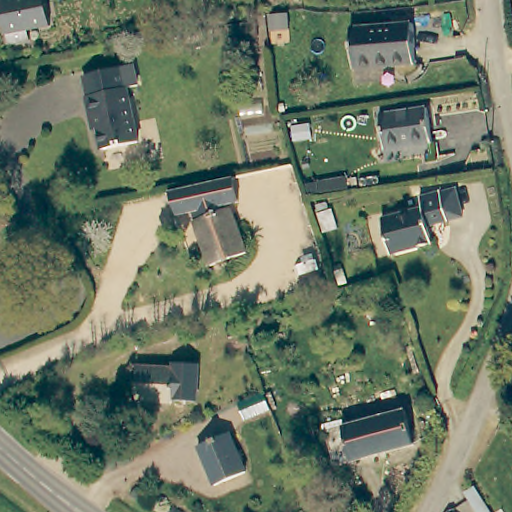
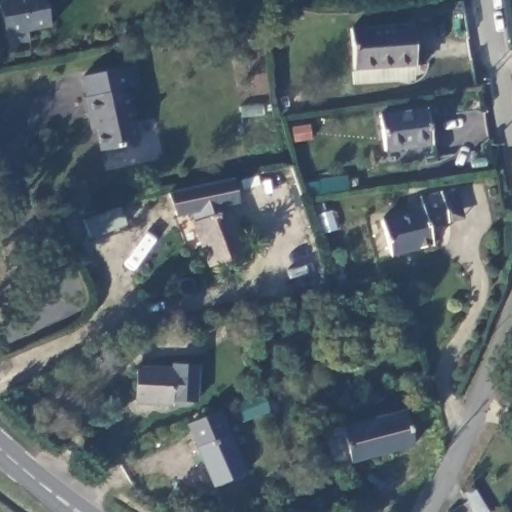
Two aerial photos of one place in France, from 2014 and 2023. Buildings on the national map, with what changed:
unchanged [(28,36),(6,41),(0,13),(0,0),(38,0),(44,24),(28,28),(28,36)]
unchanged [(419,30),(422,72),(360,75),(356,32),(419,30)]
unchanged [(130,69),(132,88),(124,89),(133,139),(95,146),(91,127),(86,129),(80,99),(83,99),(79,79),(130,69)]
unchanged [(433,114),(437,149),(394,154),(389,116),(433,114)]
unchanged [(191,215),(177,219),(169,193),(235,179),(241,202),(226,205),(191,215)]
unchanged [(392,258),(385,222),(425,213),(422,200),(445,197),(460,194),(465,219),(450,222),(451,227),(428,230),(431,249),(392,258)]
unchanged [(226,205),(240,253),(205,263),(191,215),(226,205)]
unchanged [(144,370),(179,373),(176,408),(141,404),(144,370)]
unchanged [(276,408),(248,421),(239,403),(268,389),(276,408)]
unchanged [(344,466),(334,432),(414,406),(425,439),(344,466)]
unchanged [(251,472),(220,486),(203,447),(234,433),(251,472)]

